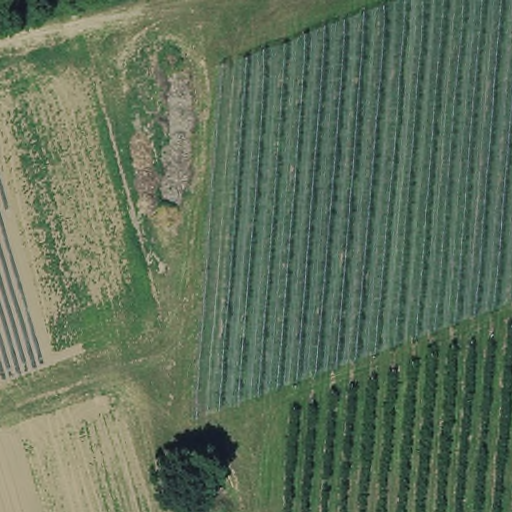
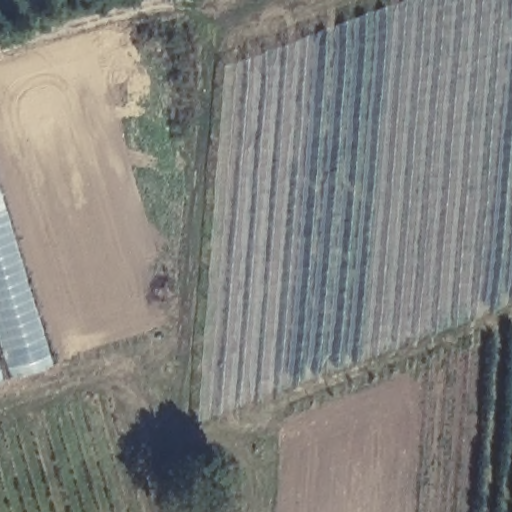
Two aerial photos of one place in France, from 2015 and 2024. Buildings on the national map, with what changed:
new [(0,385),(0,189),(55,368),(0,385)]

